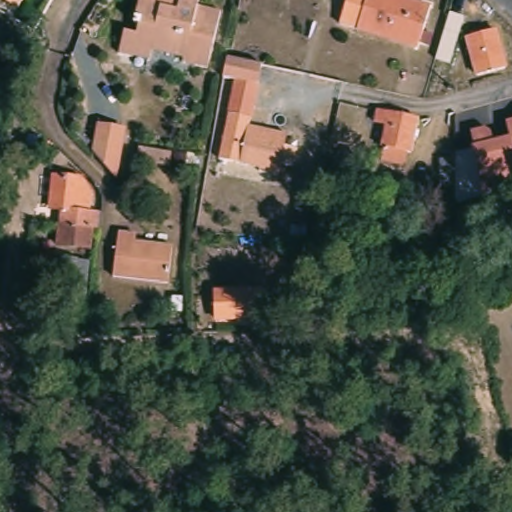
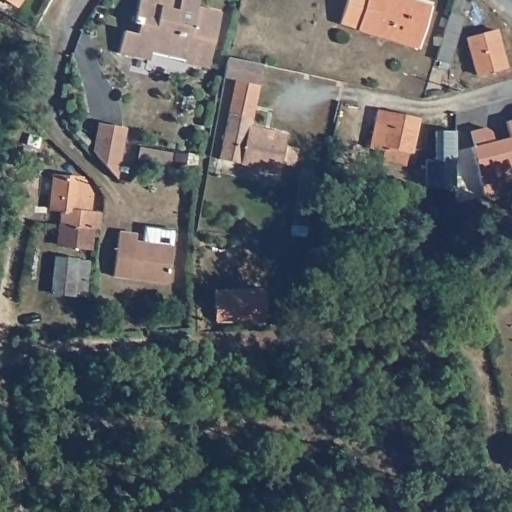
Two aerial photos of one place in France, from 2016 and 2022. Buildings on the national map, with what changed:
unchanged [(0,2),(0,0),(25,0),(17,12),(0,2)]
unchanged [(122,40),(122,36),(137,39),(139,30),(132,28),(139,0),(154,0),(157,1),(157,0),(173,0),(179,2),(179,0),(200,0),(198,12),(220,17),(210,59),(207,74),(182,68),(182,64),(155,57),(151,57),(149,67),(145,66),(131,62),(117,59),(122,40)]
unchanged [(423,48),(343,25),(351,0),(412,0),(436,7),(423,48)]
unchanged [(436,59),(450,12),(467,16),(452,64),(436,59)]
unchanged [(465,39),(496,29),(509,67),(480,77),(465,39)]
unchanged [(291,136),(282,174),(281,177),(265,172),(265,171),(265,170),(222,160),(232,112),(239,80),(263,86),(253,127),(291,136)]
unchanged [(182,109),(185,97),(194,99),(191,111),(182,109)]
unchanged [(384,166),(387,152),(384,151),(390,129),(378,127),(381,115),(422,124),(414,157),(410,157),(407,171),(384,166)]
unchanged [(511,122),(512,122),(512,126),(511,122)]
unchanged [(104,126),(128,131),(120,177),(107,163),(97,153),(104,126)]
unchanged [(489,197),(477,149),(477,147),(480,147),(476,132),(490,129),(496,132),(498,142),(498,143),(512,139),(512,191),(489,197)]
unchanged [(440,160),(456,160),(456,187),(440,187),(440,160)]
unchanged [(56,250),(58,236),(60,221),(47,220),(52,184),(56,185),(57,177),(79,179),(77,187),(82,187),(91,200),(94,202),(93,210),(102,211),(98,241),(88,240),(87,253),(56,250)]
unchanged [(307,229),(292,227),(299,177),(313,180),(307,229)]
unchanged [(136,234),(136,242),(172,247),(167,283),(112,277),(115,249),(117,232),(136,234)]
unchanged [(89,262),(85,297),(50,294),(55,257),(89,262)]
unchanged [(262,294),(263,323),(216,325),(215,295),(262,294)]

